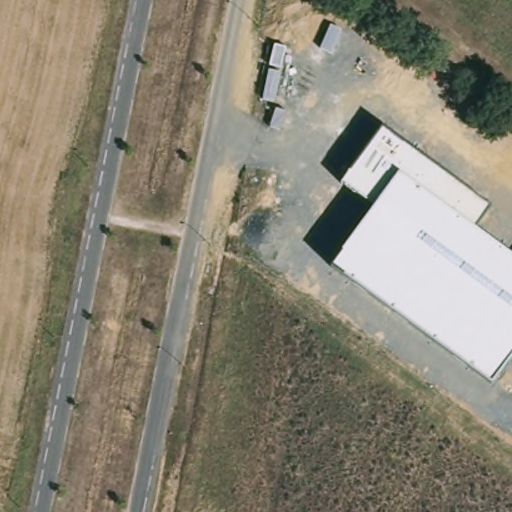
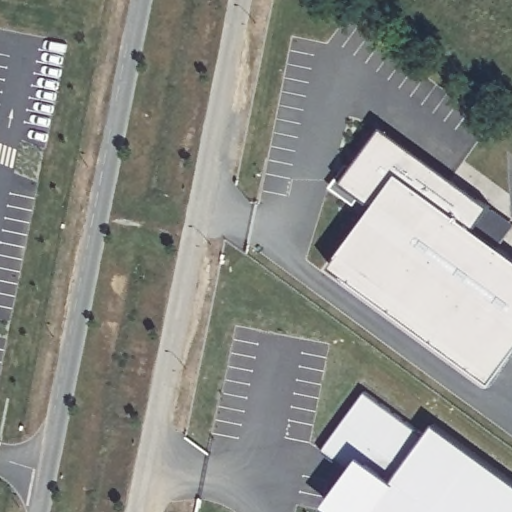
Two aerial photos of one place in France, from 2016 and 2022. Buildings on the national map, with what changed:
unchanged [(375,207),(340,182),(383,126),(489,207),(473,229),(512,257),(512,355),(492,382),(333,267),(375,207)]
new [(336,512),(325,503),(349,472),(322,450),(365,391),(426,435),(433,423),(512,480),(512,512),(336,512)]

